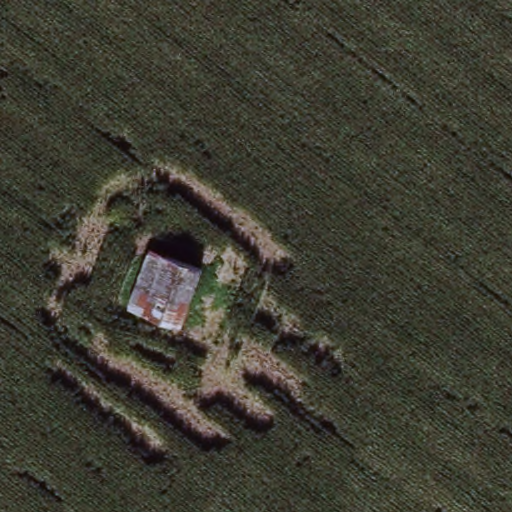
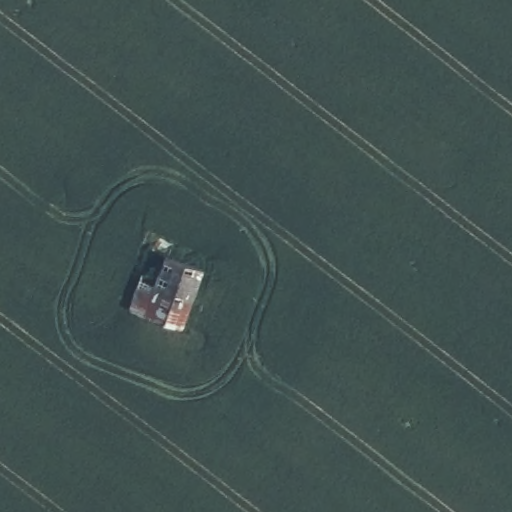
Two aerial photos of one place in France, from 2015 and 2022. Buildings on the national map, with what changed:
unchanged [(184,328),(131,308),(142,275),(150,252),(205,269),(194,299),(184,328)]

